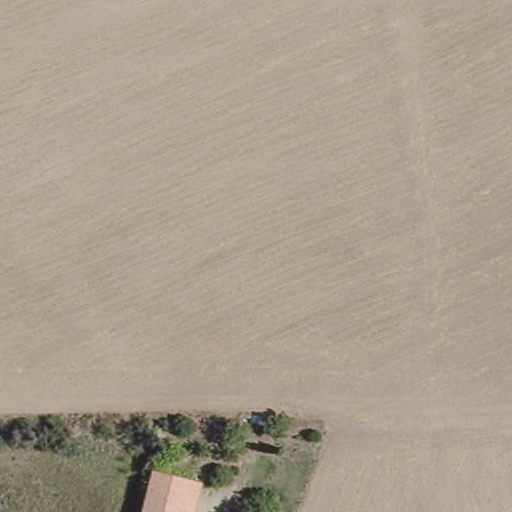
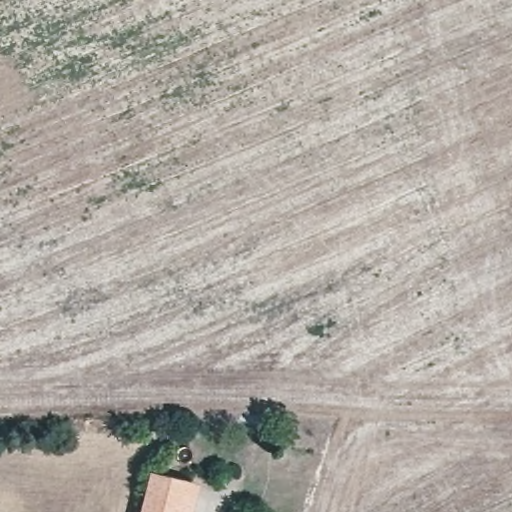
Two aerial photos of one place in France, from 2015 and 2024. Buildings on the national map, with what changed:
unchanged [(191,480),(185,512),(132,512),(139,472),(191,480)]

